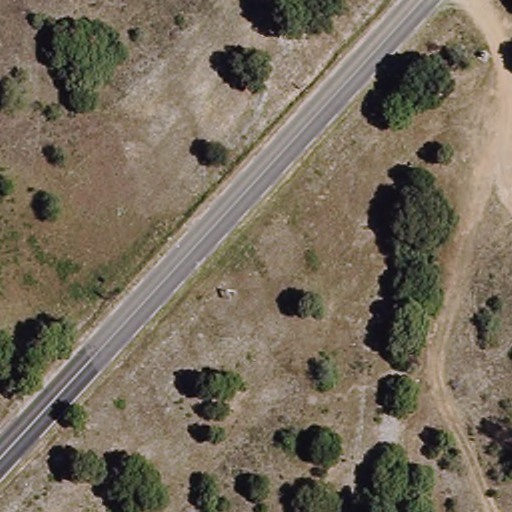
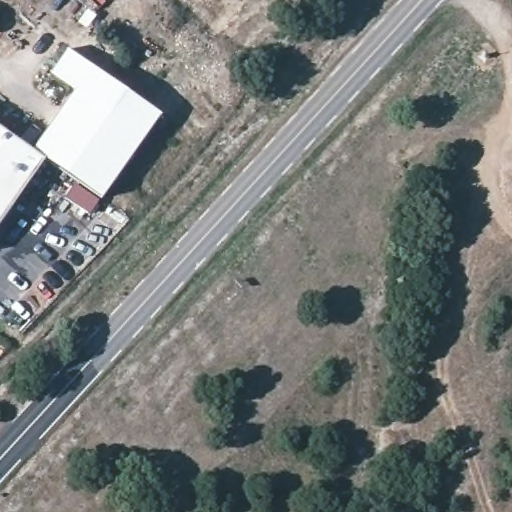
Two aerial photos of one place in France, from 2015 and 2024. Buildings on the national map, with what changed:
new [(75,88),(50,71),(65,50),(158,116),(99,198),(43,158),(31,150),(75,88)]
new [(0,218),(0,128),(31,150),(43,158),(0,218)]

